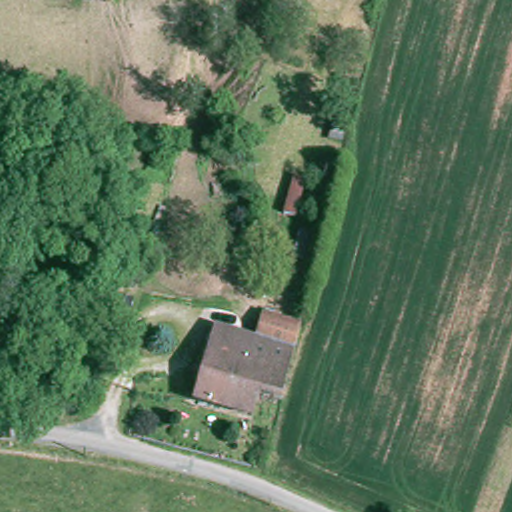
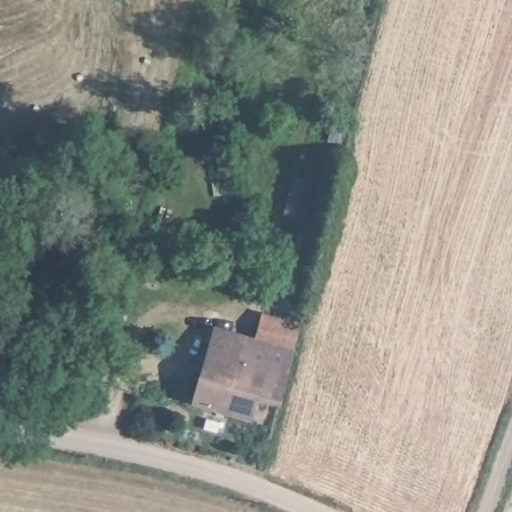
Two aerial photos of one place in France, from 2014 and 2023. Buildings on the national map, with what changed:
unchanged [(220,329),(261,340),(268,314),(305,325),(285,401),(262,396),(257,417),(200,401),(220,329)]

